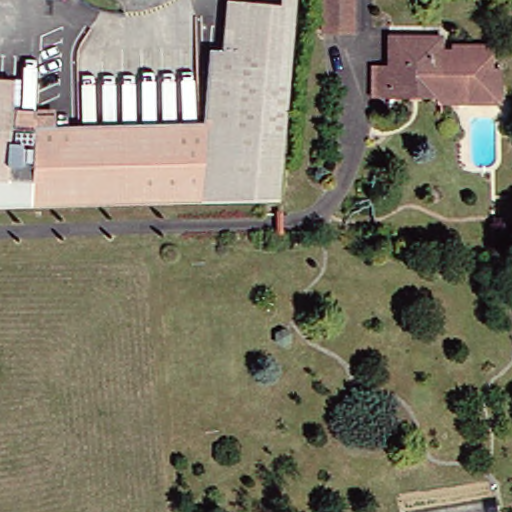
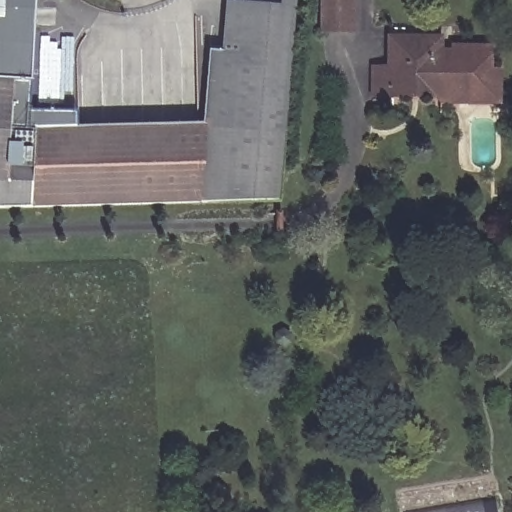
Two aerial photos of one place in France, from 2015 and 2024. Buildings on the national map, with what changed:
new [(31,82),(29,121),(14,120),(15,75),(0,75),(0,0),(35,0),(31,82)]
unchanged [(214,50),(226,49),(229,1),(285,3),(286,0),(299,0),(299,4),(292,110),(288,186),(35,205),(40,122),(209,114),(214,50)]
unchanged [(359,25),(328,25),(328,0),(358,0),(359,25)]
unchanged [(374,95),(373,65),(390,64),(391,35),(444,35),(444,45),(496,45),(496,69),(471,69),(472,102),(443,102),(443,94),(391,95),(374,95)]
unchanged [(471,69),(496,69),(504,69),(504,101),(472,102),(471,69)]
unchanged [(14,120),(40,122),(35,205),(0,203),(0,75),(15,75),(14,120)]

